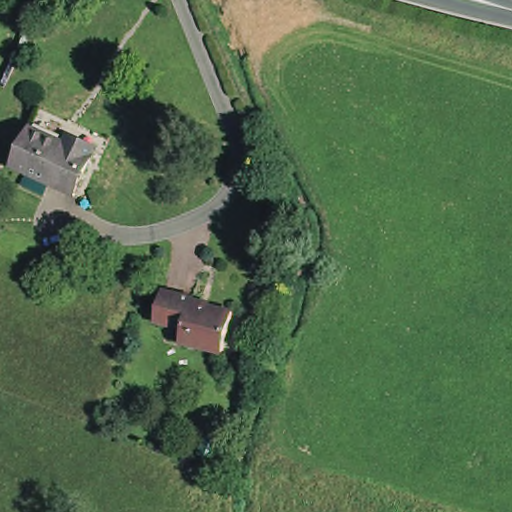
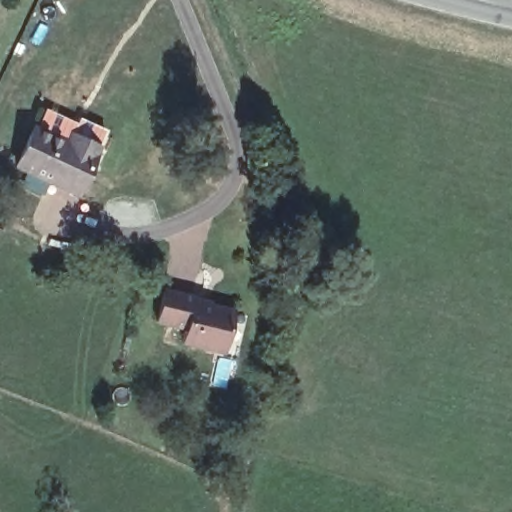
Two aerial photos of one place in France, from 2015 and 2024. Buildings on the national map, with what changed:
unchanged [(10,166),(27,128),(62,143),(65,135),(91,147),(69,194),(10,166)]
unchanged [(178,346),(180,334),(151,325),(159,294),(189,301),(187,305),(229,314),(222,347),(220,356),(178,346)]

